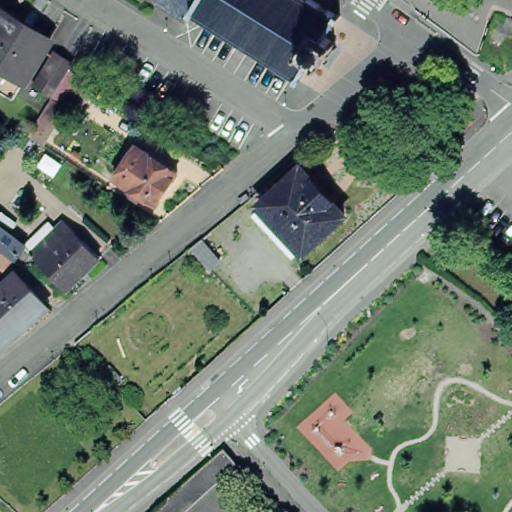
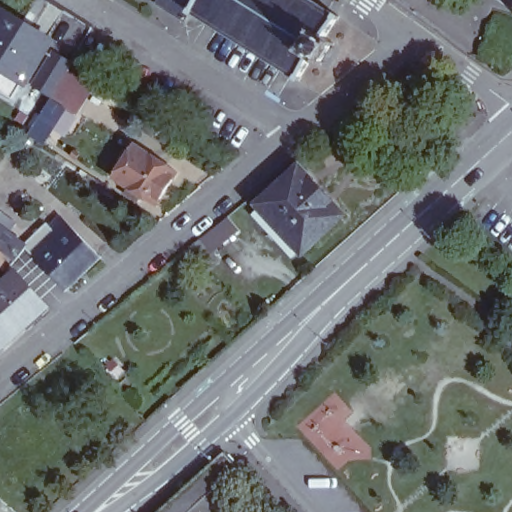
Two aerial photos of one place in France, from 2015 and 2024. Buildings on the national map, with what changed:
unchanged [(341,19),(344,20),(342,24),(342,23),(330,42),(339,48),(337,50),(339,51),(329,67),(327,66),(326,69),(317,63),(305,81),(306,82),(304,85),(301,83),(301,82),(199,18),(199,19),(195,17),(190,25),(162,7),(167,0),(309,0),(341,19)]
unchanged [(0,83),(10,67),(1,61),(0,62),(0,22),(7,11),(53,40),(29,79),(17,98),(0,87),(0,83)]
unchanged [(41,83),(59,54),(73,62),(54,92),(41,83)]
unchanged [(58,98),(65,81),(92,95),(80,113),(72,107),(48,144),(34,135),(57,98),(58,98)]
unchanged [(132,150),(142,156),(146,150),(178,171),(156,204),(115,176),(132,150)]
unchanged [(236,231),(262,208),(270,201),(269,199),(310,162),(354,209),(312,246),(310,244),(302,252),(274,221),(249,245),(236,231)]
unchanged [(4,244),(3,246),(0,244),(0,208),(7,213),(20,223),(14,231),(31,244),(22,258),(4,244)]
unchanged [(39,247),(34,241),(52,223),(58,229),(69,218),(105,256),(72,288),(35,251),(39,247)]
unchanged [(201,239),(219,260),(207,269),(190,248),(201,239)]
unchanged [(0,261),(0,253),(2,249),(18,260),(11,271),(0,261)]
unchanged [(52,305),(19,335),(0,315),(0,292),(22,272),(52,305)]
unchanged [(2,350),(0,348),(0,315),(19,335),(2,350)]
unchanged [(234,468),(185,512),(164,512),(224,457),(234,468)]

